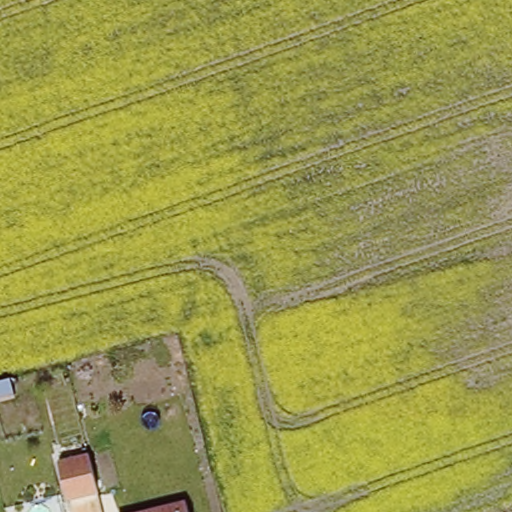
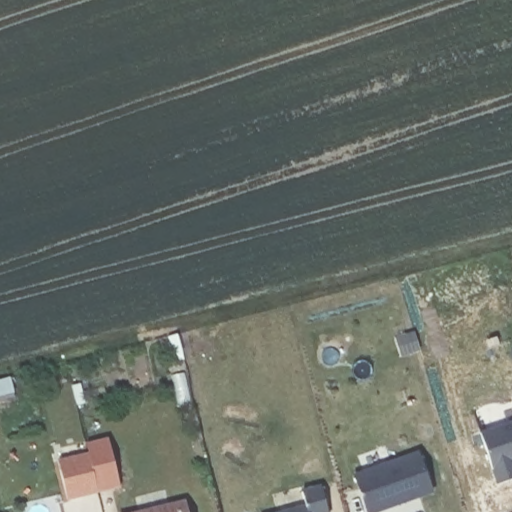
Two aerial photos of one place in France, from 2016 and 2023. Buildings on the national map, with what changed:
new [(512,423),(512,480),(497,484),(481,433),(512,423)]
unchanged [(90,451),(99,493),(67,500),(58,459),(90,451)]
new [(433,491),(375,512),(368,512),(355,475),(419,452),(433,491)]
new [(303,490),(322,485),(329,512),(281,512),(307,505),(303,490)]
unchanged [(190,512),(123,512),(187,498),(190,512)]

